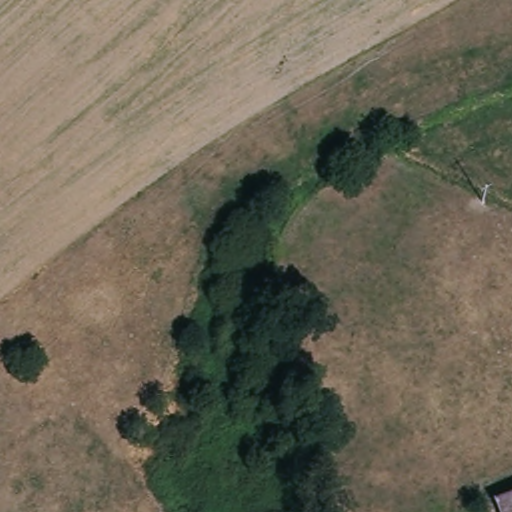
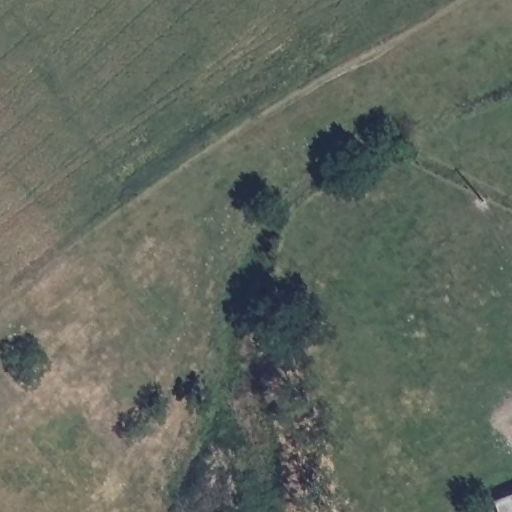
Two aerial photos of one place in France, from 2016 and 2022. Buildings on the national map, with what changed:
unchanged [(497,499),(512,493),(512,512),(502,512),(497,499)]

